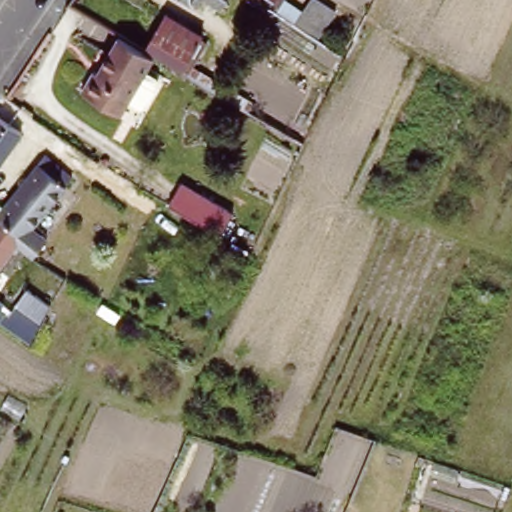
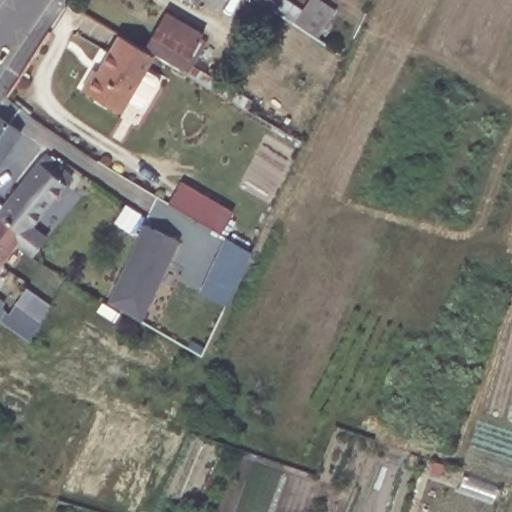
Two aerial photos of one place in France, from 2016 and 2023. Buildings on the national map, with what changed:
unchanged [(187,6),(179,0),(191,0),(187,6)]
unchanged [(228,18),(217,11),(201,0),(241,0),(228,18)]
unchanged [(302,9),(307,0),(318,0),(339,12),(320,45),(257,0),(290,0),(302,9)]
unchanged [(142,50),(168,12),(205,32),(181,73),(152,56),(142,50)]
unchanged [(118,35),(125,40),(142,50),(152,56),(149,62),(118,114),(81,91),(93,71),(95,71),(117,35),(118,35)]
unchanged [(4,102),(31,121),(0,167),(0,108),(4,102)]
unchanged [(0,221),(0,216),(45,160),(74,182),(34,232),(50,245),(36,262),(19,252),(21,238),(0,221)]
unchanged [(181,180),(231,211),(220,232),(168,202),(181,180)]
unchanged [(21,238),(19,252),(0,276),(0,221),(21,238)]
new [(147,222),(181,239),(143,317),(110,299),(147,222)]
new [(229,237),(253,252),(236,288),(228,304),(203,292),(211,276),(229,237)]
unchanged [(6,327),(29,292),(53,307),(30,342),(6,327)]

